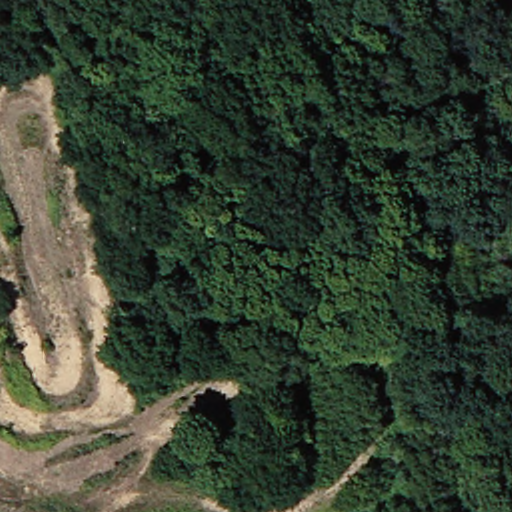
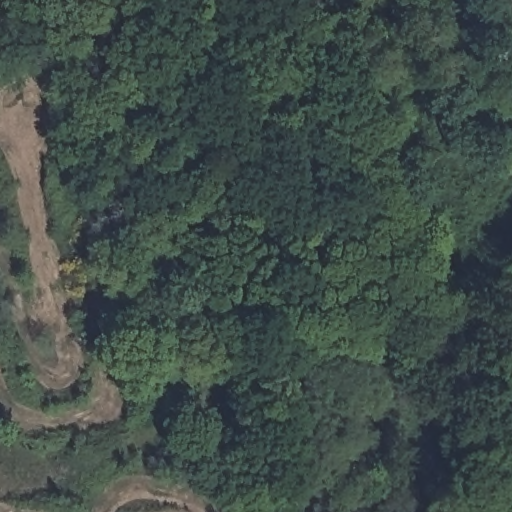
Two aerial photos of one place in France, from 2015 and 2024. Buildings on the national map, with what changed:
[]

